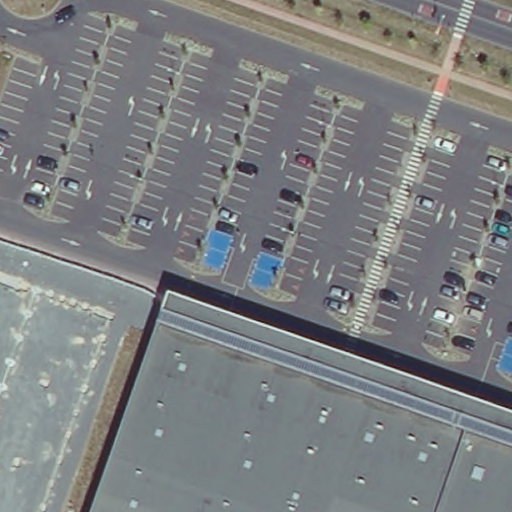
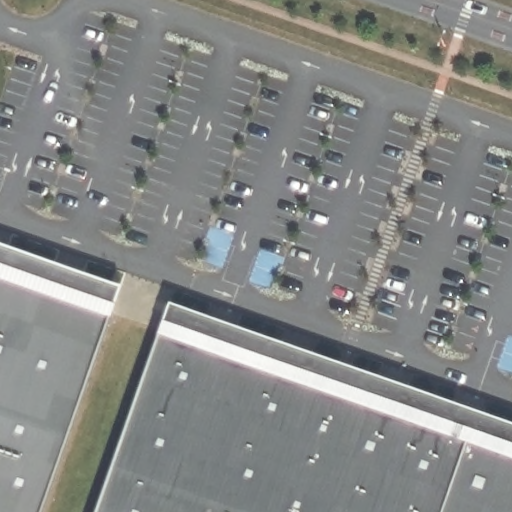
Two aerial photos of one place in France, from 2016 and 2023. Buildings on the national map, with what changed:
new [(112,314),(0,273),(0,241),(123,286),(112,314)]
new [(40,512),(0,512),(0,273),(112,314),(40,512)]
unchanged [(170,299),(512,420),(512,512),(94,512),(170,299)]

